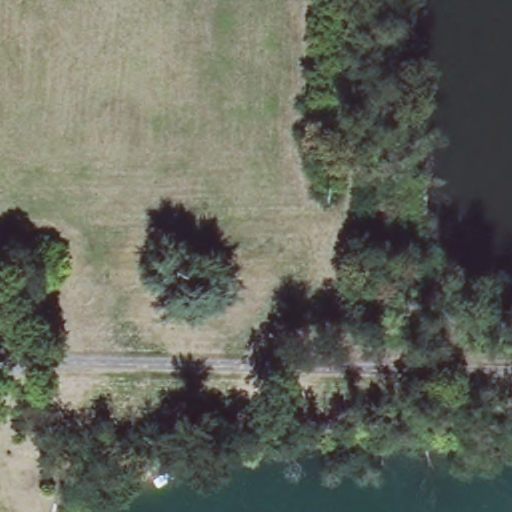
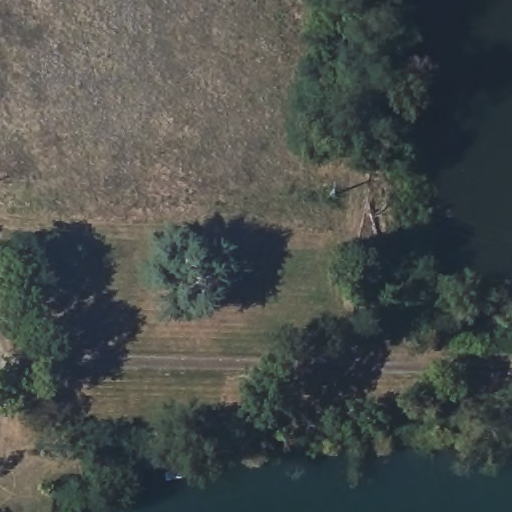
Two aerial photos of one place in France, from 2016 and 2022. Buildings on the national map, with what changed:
[]

